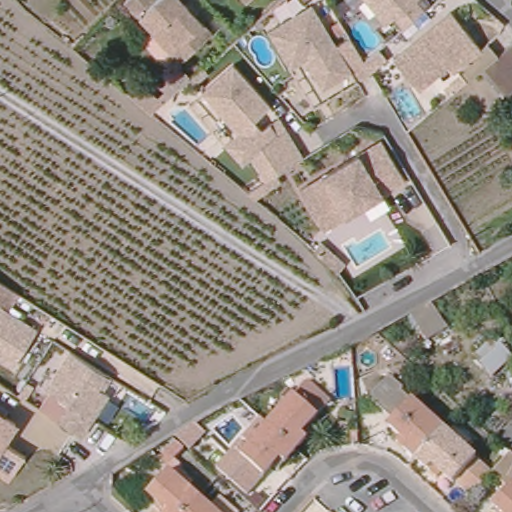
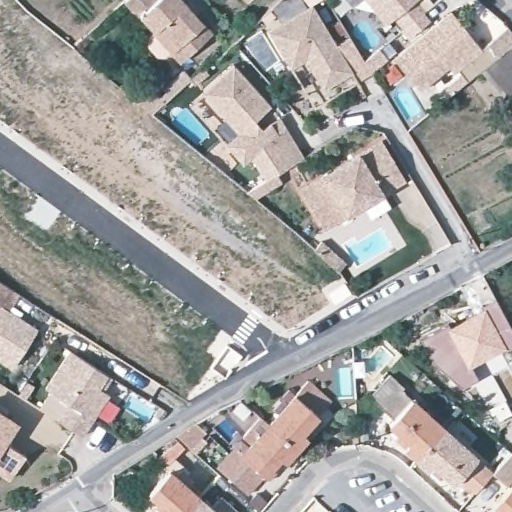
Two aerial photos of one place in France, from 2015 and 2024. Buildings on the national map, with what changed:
unchanged [(157,31),(143,15),(140,17),(127,2),(130,0),(185,0),(215,35),(188,57),(182,62),(156,32),(157,31)]
unchanged [(317,0),(341,40),(355,32),(376,68),(361,77),(356,67),(328,84),(310,54),(295,63),(273,26),(316,0),(317,0)]
unchanged [(346,0),(408,0),(371,30),(346,0)]
unchanged [(466,84),(456,72),(452,75),(447,68),(418,92),(392,61),(450,14),(480,51),(487,45),(497,58),(484,69),(466,84)]
unchanged [(512,46),(512,92),(505,97),(484,69),(497,58),(512,46)]
unchanged [(290,123),(308,152),(270,176),(256,152),(247,160),(230,141),(243,130),(206,89),(237,61),(275,102),(259,116),(265,124),(276,117),(284,112),(290,123)]
unchanged [(151,112),(130,95),(142,89),(161,104),(151,112)]
unchanged [(319,229),(295,190),(377,141),(400,180),(355,207),(348,212),(319,229)]
unchanged [(16,310),(42,327),(20,363),(0,351),(0,301),(0,300),(0,273),(28,292),(16,310)]
new [(448,326),(482,308),(480,305),(494,297),(512,330),(512,346),(507,350),(505,347),(470,366),(477,378),(462,387),(430,359),(420,338),(446,322),(448,326)]
unchanged [(106,397),(81,439),(55,422),(65,406),(46,392),(68,356),(105,378),(97,392),(106,397)]
unchanged [(417,455),(395,433),(398,429),(390,420),(392,417),(368,396),(389,372),(403,384),(401,388),(412,396),(444,425),(417,455)]
unchanged [(245,451),(299,392),(310,378),(333,397),(321,414),(272,473),(245,451)]
unchanged [(436,405),(418,390),(426,381),(444,396),(436,405)]
unchanged [(7,440),(29,453),(15,477),(0,467),(0,405),(9,411),(7,413),(20,421),(7,440)]
unchanged [(246,496),(215,466),(260,417),(269,425),(245,451),(268,470),(246,496)]
unchanged [(512,473),(503,483),(490,471),(473,490),(457,475),(453,479),(444,471),(440,475),(417,455),(444,425),(492,468),(510,450),(512,452),(512,473)]
unchanged [(178,476),(173,472),(160,461),(180,447),(192,456),(186,462),(186,463),(188,466),(178,476)]
unchanged [(206,487),(215,476),(224,483),(215,494),(206,487)]
unchanged [(503,511),(493,501),(512,479),(512,512),(502,512),(503,511)]
unchanged [(204,512),(165,512),(167,510),(158,502),(178,480),(188,489),(194,483),(202,490),(197,497),(208,507),(204,512)]
unchanged [(215,512),(204,512),(208,507),(215,512)]
unchanged [(228,507),(234,512),(223,512),(228,507)]

